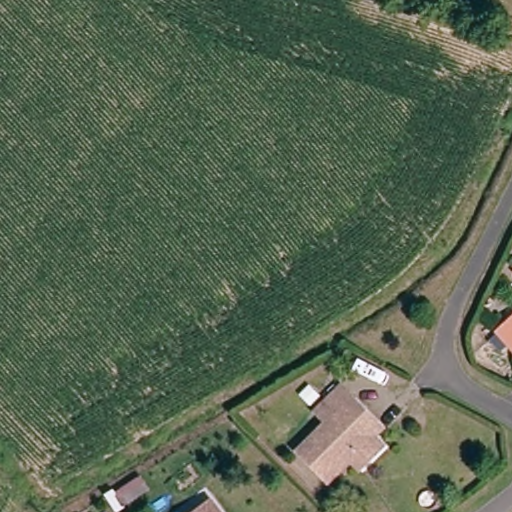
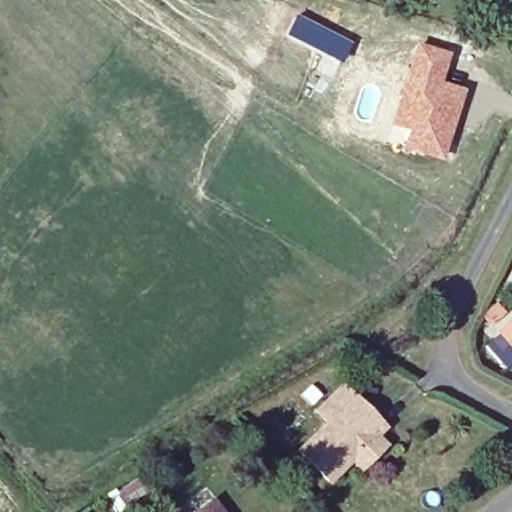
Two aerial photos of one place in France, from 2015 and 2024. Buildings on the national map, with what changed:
new [(295,15),(350,42),(339,64),(285,35),(295,15)]
new [(414,41),(451,53),(440,81),(464,89),(441,162),(400,150),(404,133),(387,127),(414,41)]
unchanged [(512,324),(512,341),(504,331),(512,324)]
unchanged [(350,462),(327,485),(298,456),(327,427),(316,416),(342,391),(354,403),(383,432),(374,441),(384,451),(367,468),(362,474),(350,462)]
unchanged [(102,503),(95,490),(103,485),(105,488),(130,473),(136,484),(102,503)]
unchanged [(218,512),(197,512),(211,501),(218,512)]

